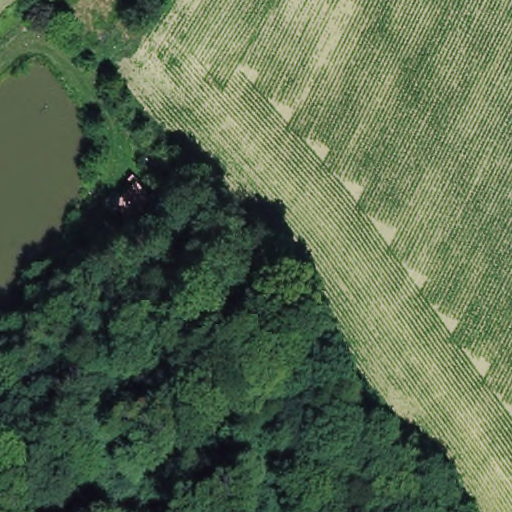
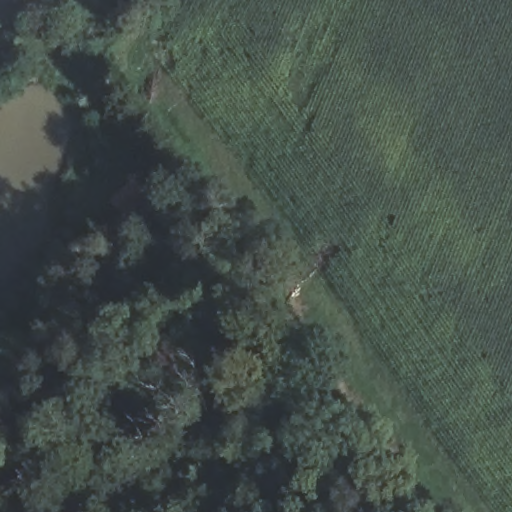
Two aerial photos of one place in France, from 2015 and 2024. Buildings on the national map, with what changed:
unchanged [(149,192),(125,215),(115,205),(137,182),(149,192)]

